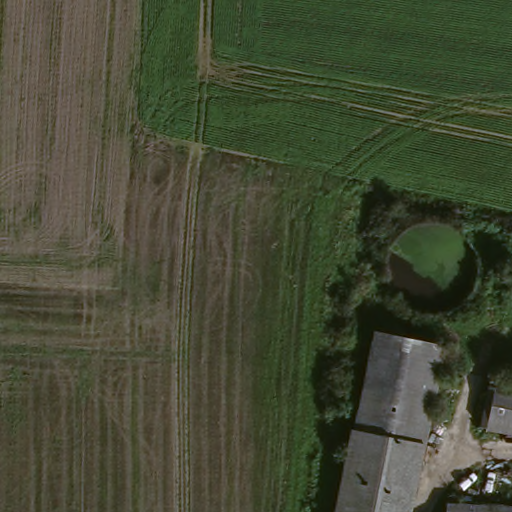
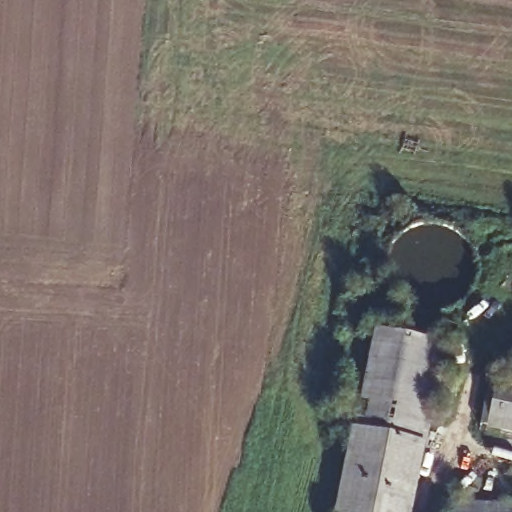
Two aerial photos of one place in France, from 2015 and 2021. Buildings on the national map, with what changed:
unchanged [(355,423),(361,423),(381,327),(452,342),(421,487),(416,512),(337,512),(355,423)]
unchanged [(499,380),(512,383),(512,432),(490,427),(499,380)]
unchanged [(450,499),(512,502),(512,512),(449,512),(450,499)]

